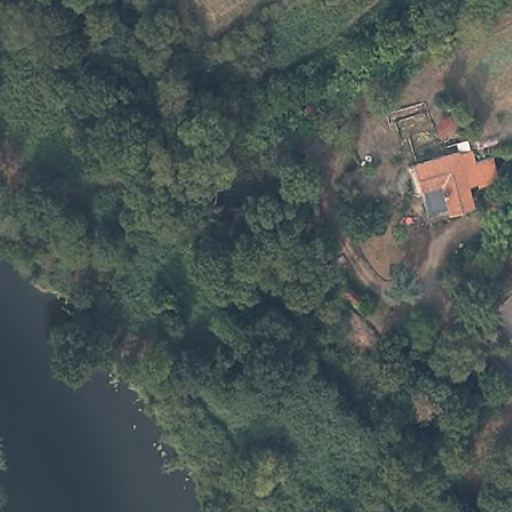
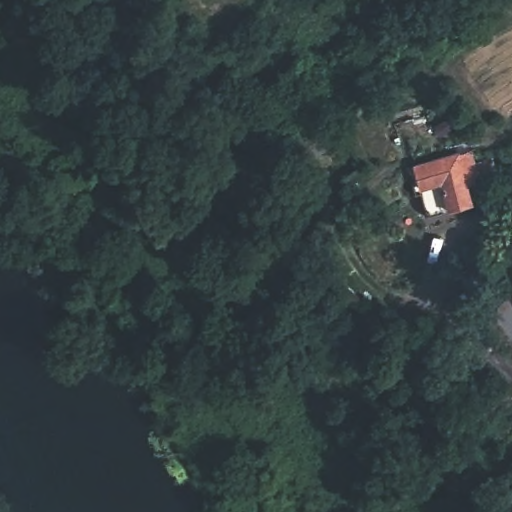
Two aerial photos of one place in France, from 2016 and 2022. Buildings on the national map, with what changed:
unchanged [(305,164),(287,139),(321,114),(339,136),(305,164)]
unchanged [(471,146),(480,177),(467,180),(472,200),(429,212),(415,162),(471,146)]
unchanged [(512,283),(512,291),(509,287),(512,283)]

